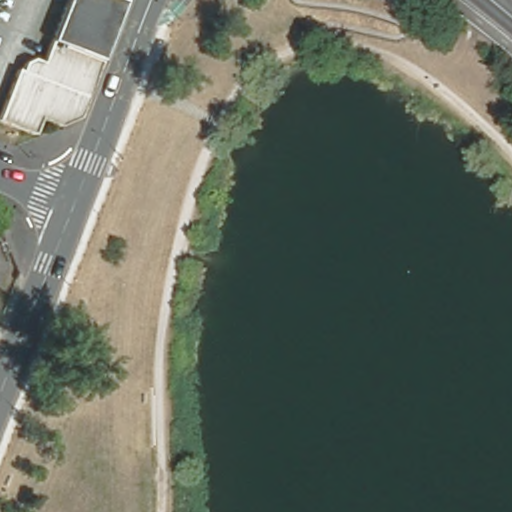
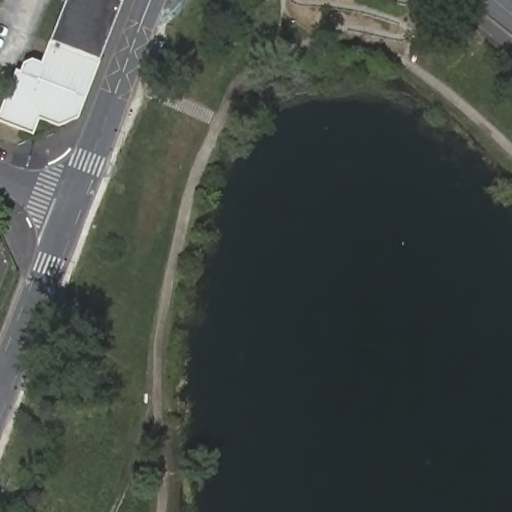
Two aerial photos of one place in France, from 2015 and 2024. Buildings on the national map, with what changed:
unchanged [(97,51),(46,31),(59,0),(116,0),(114,8),(111,14),(97,51)]
unchanged [(76,105),(55,98),(48,114),(35,109),(26,129),(25,129),(0,117),(0,100),(1,96),(16,59),(22,61),(25,53),(32,49),(39,52),(46,31),(97,51),(76,105)]

